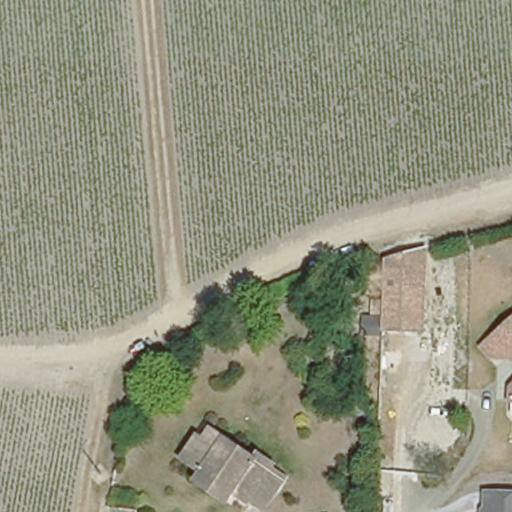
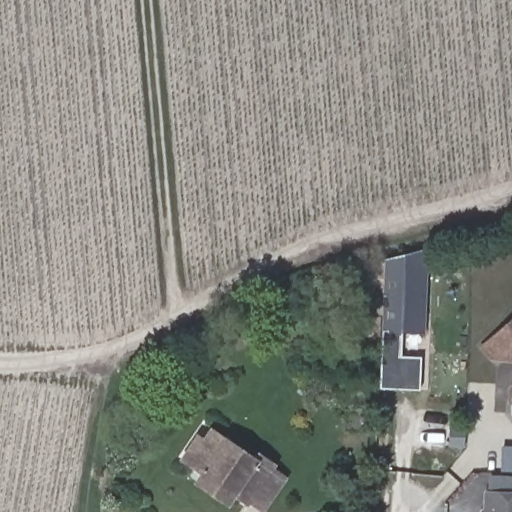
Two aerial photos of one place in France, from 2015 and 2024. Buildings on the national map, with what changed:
unchanged [(382,331),(384,259),(429,246),(425,333),(382,331)]
unchanged [(490,343),(483,336),(492,328),(512,311),(512,345),(505,344),(490,343)]
new [(420,390),(380,388),(382,331),(402,332),(401,356),(422,356),(420,390)]
unchanged [(511,376),(512,376),(512,392),(511,392),(511,376)]
unchanged [(512,399),(512,406),(511,405),(512,399)]
unchanged [(265,503),(251,494),(249,498),(235,489),(234,491),(235,492),(229,500),(199,480),(205,470),(185,456),(199,433),(205,438),(214,427),(256,457),(258,452),(272,462),(270,463),(284,473),(265,503)]
unchanged [(512,491),(512,512),(482,512),(482,490),(512,491)]

